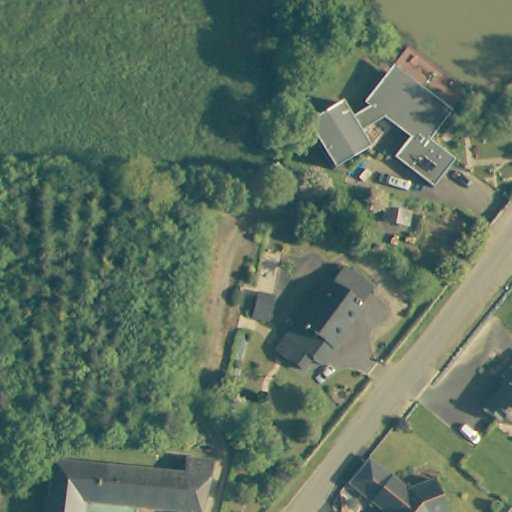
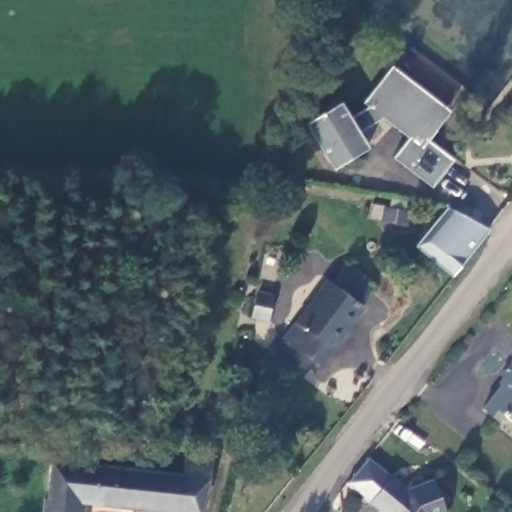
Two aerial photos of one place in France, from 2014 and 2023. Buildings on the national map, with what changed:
unchanged [(432,188),(392,159),(408,138),(381,117),(358,132),(368,147),(333,170),(304,124),(339,101),(351,116),(368,107),(364,104),(392,65),(451,110),(428,140),(455,160),(432,188)]
new [(490,230),(453,275),(416,246),(448,207),(490,230)]
unchanged [(344,265),(372,287),(361,300),(363,302),(321,361),(287,335),(328,275),(332,278),(344,265)]
unchanged [(251,315),(254,294),(267,295),(269,295),(266,316),(263,316),(251,315)]
unchanged [(512,363),(512,419),(506,413),(500,420),(485,408),(508,378),(503,375),(512,363)]
unchanged [(182,465),(189,465),(190,458),(217,460),(204,512),(176,512),(87,502),(86,512),(46,512),(47,499),(49,500),(54,460),(182,471),(182,465)]
unchanged [(389,476),(405,490),(431,480),(444,512),(380,512),(368,503),(389,476)]

